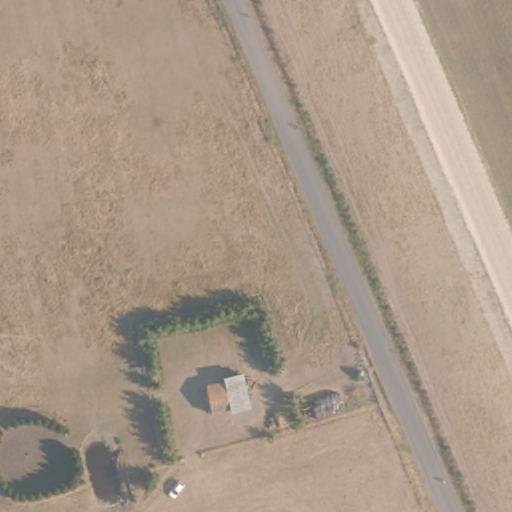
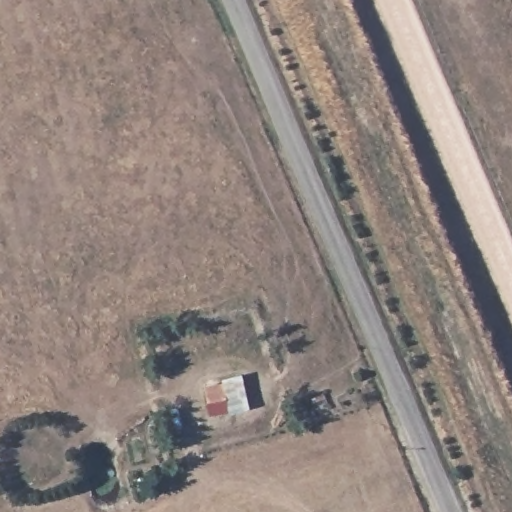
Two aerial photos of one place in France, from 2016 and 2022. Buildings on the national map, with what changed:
unchanged [(231,383),(237,407),(219,411),(214,387),(231,383)]

